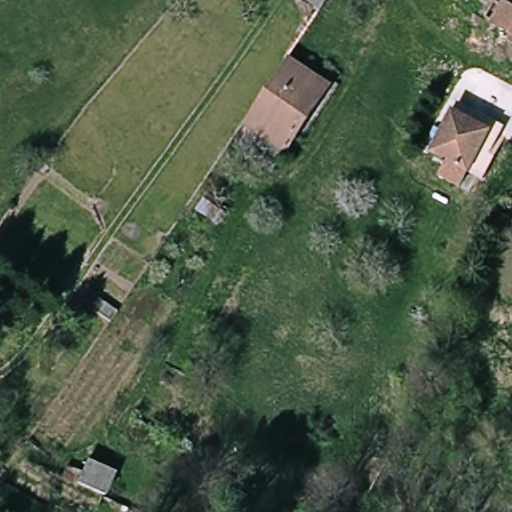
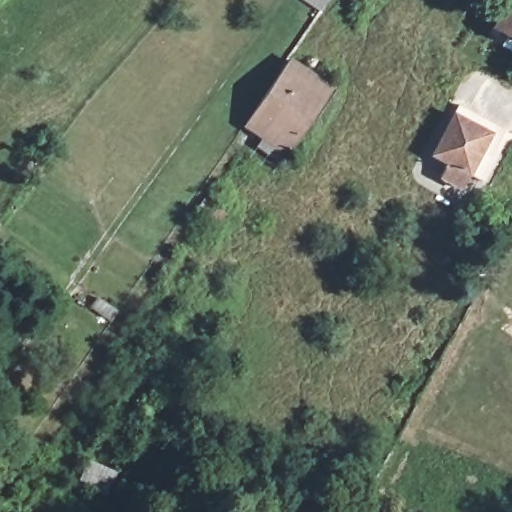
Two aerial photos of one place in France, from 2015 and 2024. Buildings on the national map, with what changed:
unchanged [(314,0),(330,0),(325,8),(314,0)]
unchanged [(498,23),(488,18),(497,3),(512,11),(512,36),(496,28),(498,23)]
unchanged [(258,141),(264,132),(247,120),(290,56),(332,85),(288,148),(282,158),(258,141)]
unchanged [(450,102),(497,128),(463,192),(452,186),(482,129),(446,110),(450,102)]
unchanged [(431,175),(439,159),(424,151),(446,110),(482,129),(452,186),(431,175)]
unchanged [(118,321),(112,331),(92,317),(99,308),(118,321)]
unchanged [(79,479),(92,461),(116,477),(102,496),(79,479)]

